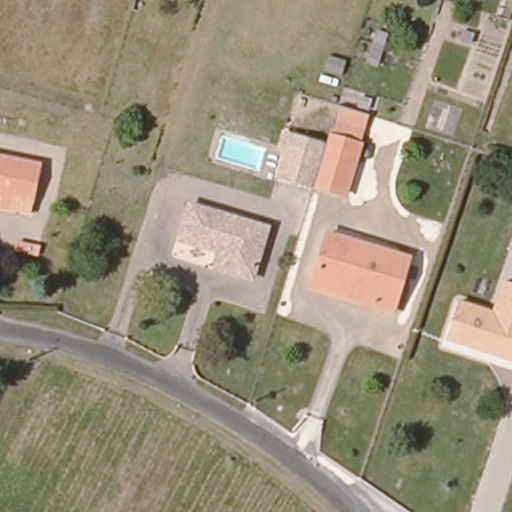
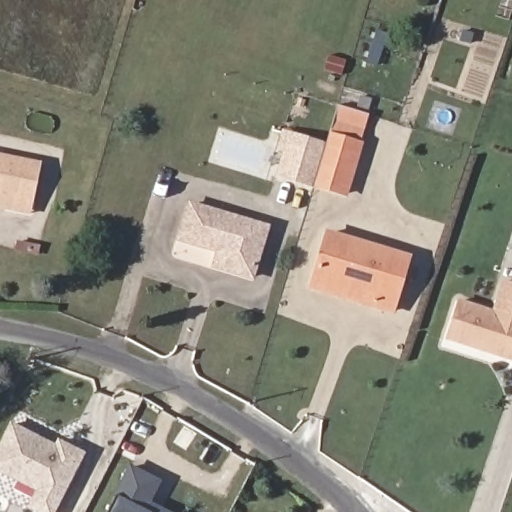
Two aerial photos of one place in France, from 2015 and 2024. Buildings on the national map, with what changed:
unchanged [(312,186),(324,146),(328,135),(333,120),(364,131),(360,144),(344,195),(312,186)]
unchanged [(276,175),(289,134),(324,146),(312,186),(276,175)]
unchanged [(0,194),(0,156),(42,165),(34,202),(0,194)]
unchanged [(213,269),(218,252),(180,240),(189,206),(263,231),(250,281),(213,269)]
unchanged [(312,278),(325,233),(409,257),(393,315),(372,308),(310,288),(312,278)]
unchanged [(446,339),(458,302),(492,312),(502,281),(512,284),(512,360),(502,357),(446,339)]
new [(35,492),(0,473),(0,443),(11,421),(55,444),(58,438),(86,452),(56,512),(35,512),(27,508),(35,492)]
unchanged [(159,480),(148,502),(162,509),(168,512),(107,512),(131,466),(159,480)]

